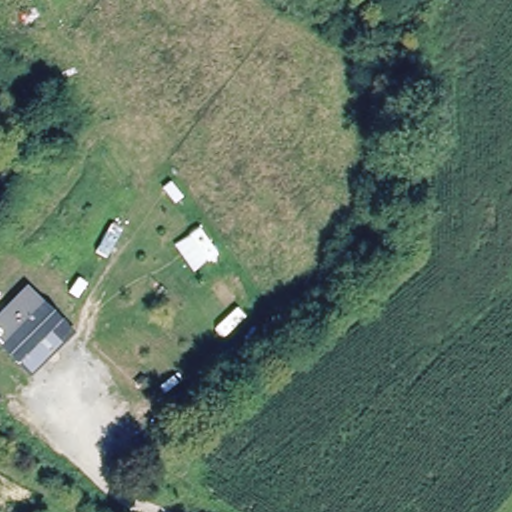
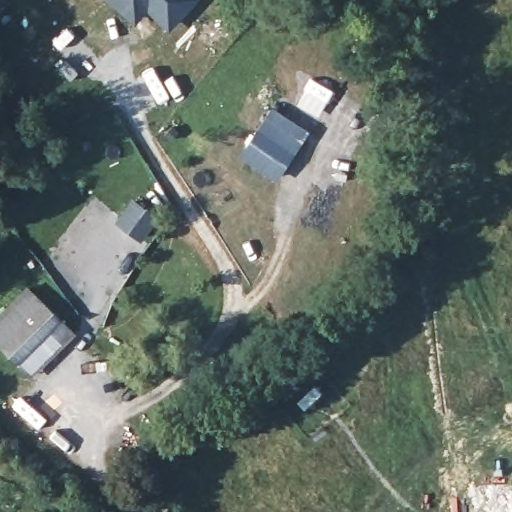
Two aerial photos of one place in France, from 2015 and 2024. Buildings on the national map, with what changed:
new [(167,32),(147,13),(131,26),(105,0),(199,0),(167,32)]
new [(272,105),(310,131),(275,184),(237,157),(272,105)]
unchanged [(30,378),(0,348),(0,312),(28,284),(77,332),(30,378)]

